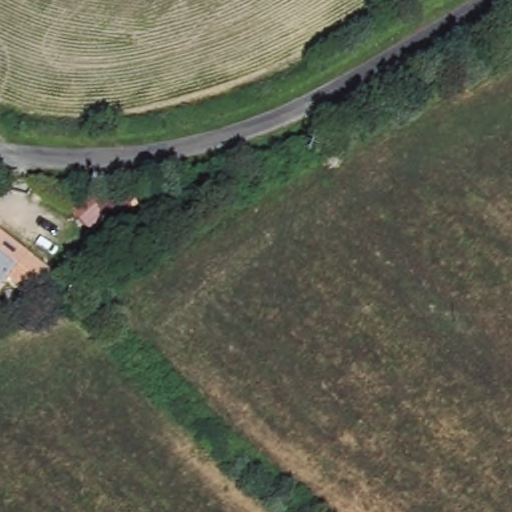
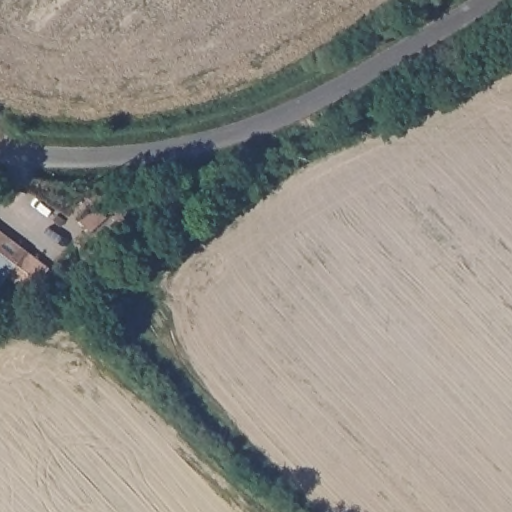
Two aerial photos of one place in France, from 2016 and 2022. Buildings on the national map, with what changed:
unchanged [(19,277),(0,263),(0,229),(36,254),(33,258),(45,266),(30,285),(19,277)]

